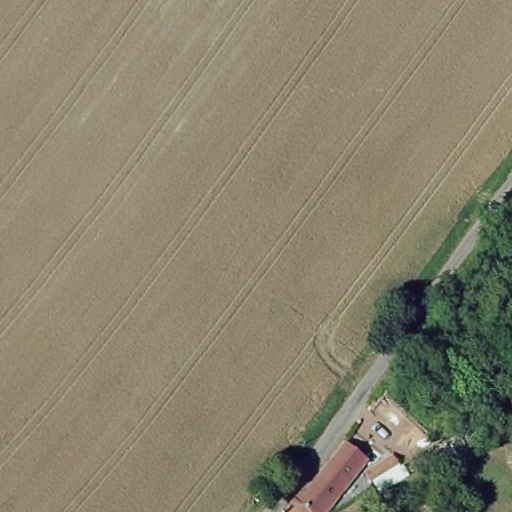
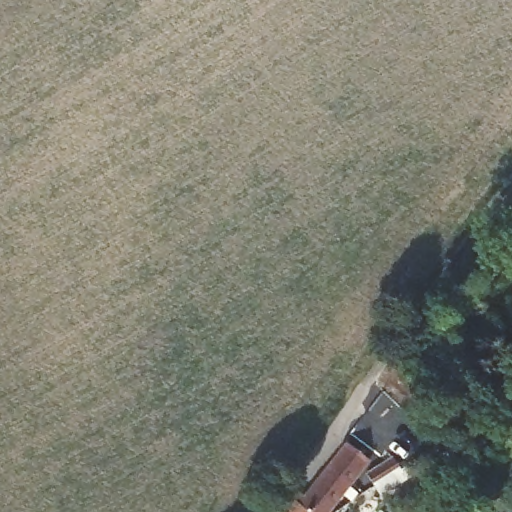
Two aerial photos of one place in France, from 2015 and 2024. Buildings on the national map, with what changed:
unchanged [(300,496),(342,444),(362,461),(321,512),(302,512),(289,501),(297,493),(300,496)]
unchanged [(387,457),(395,470),(369,486),(362,473),(387,457)]
unchanged [(302,512),(279,512),(289,501),(302,512)]

